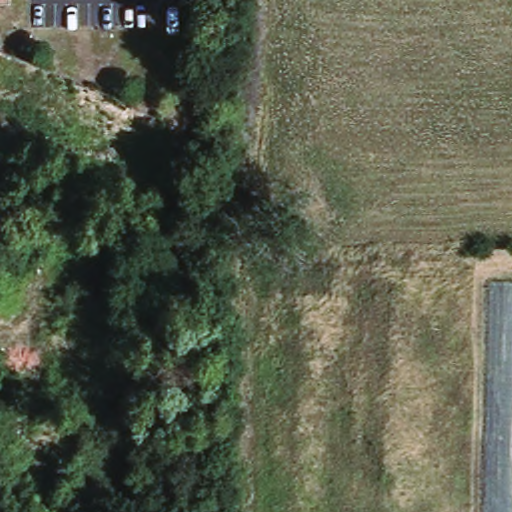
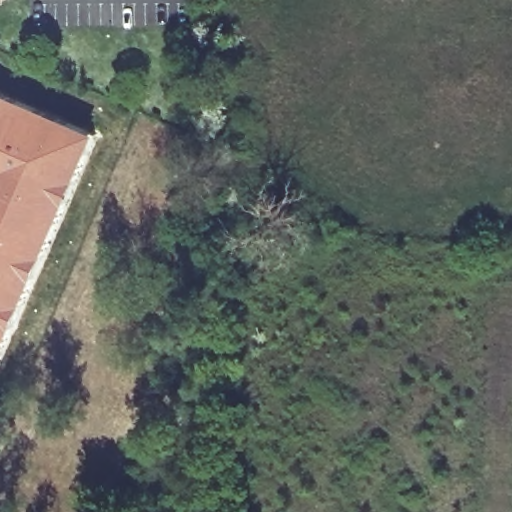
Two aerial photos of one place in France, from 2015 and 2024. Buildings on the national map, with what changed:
unchanged [(15,3),(0,3),(0,0),(15,0),(15,3)]
new [(40,278),(0,363),(0,89),(99,133),(40,278)]

